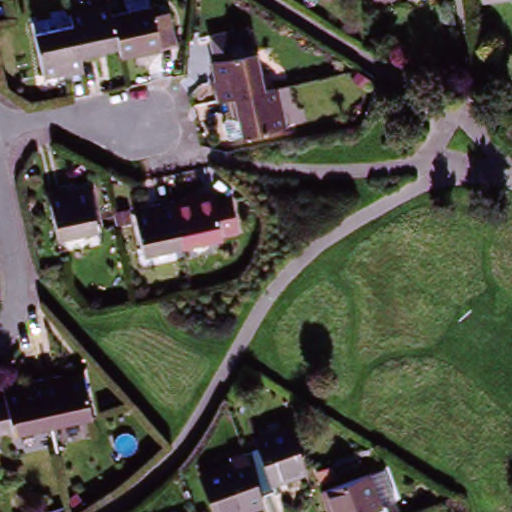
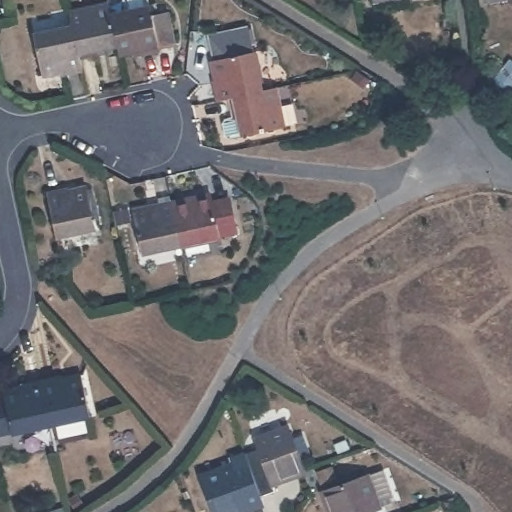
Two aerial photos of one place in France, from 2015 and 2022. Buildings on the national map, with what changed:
unchanged [(108,0),(111,9),(110,9),(117,40),(98,44),(99,50),(79,53),(72,21),(71,14),(69,6),(103,0),(108,0)]
unchanged [(139,45),(119,49),(119,48),(117,40),(110,9),(111,9),(125,7),(123,0),(149,0),(149,2),(158,48),(140,51),(139,45)]
unchanged [(481,0),(489,0),(482,1),(481,0)]
unchanged [(79,53),(80,58),(81,67),(61,71),(60,66),(41,70),(32,29),(72,21),(79,53)]
unchanged [(212,41),(253,32),(259,57),(217,66),(212,41)]
unchanged [(267,95),(256,98),(240,101),(233,103),(221,105),(217,86),(221,85),(217,66),(259,57),(267,95)]
unchanged [(230,141),(227,128),(230,124),(237,123),(233,103),(240,101),(256,98),(267,95),(279,92),(288,132),(247,141),(234,144),(230,141)]
unchanged [(45,191),(66,187),(66,191),(86,187),(96,230),(55,238),(45,191)]
unchanged [(196,200),(216,196),(217,202),(235,199),(241,232),(224,236),(224,238),(186,245),(183,234),(176,200),(196,196),(196,200)]
unchanged [(183,234),(186,245),(146,253),(138,212),(157,208),(156,204),(176,200),(183,234)]
unchanged [(94,422),(56,431),(55,426),(46,385),(66,381),(67,386),(85,382),(94,422)]
unchanged [(8,399),(26,394),(25,390),(46,385),(55,426),(56,431),(16,440),(0,444),(0,408),(9,406),(8,399)]
unchanged [(303,472),(271,483),(274,492),(259,497),(252,479),(244,454),(258,449),(255,439),(288,428),(303,472)]
unchanged [(252,479),(259,497),(246,501),(249,510),(244,512),(212,512),(200,477),(233,466),(230,459),(244,454),(252,479)]
unchanged [(322,492),(366,476),(384,470),(396,503),(385,507),(386,512),(328,512),(322,492)]

